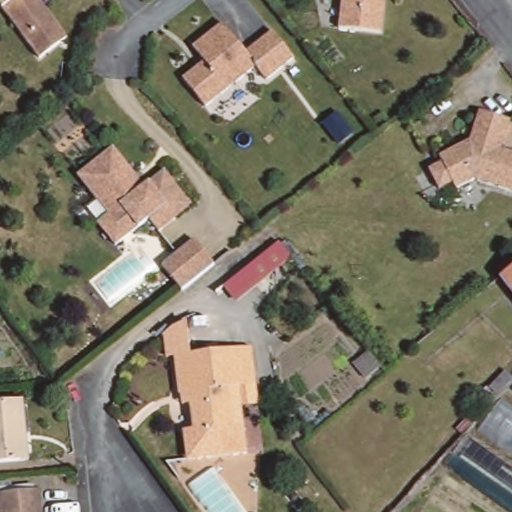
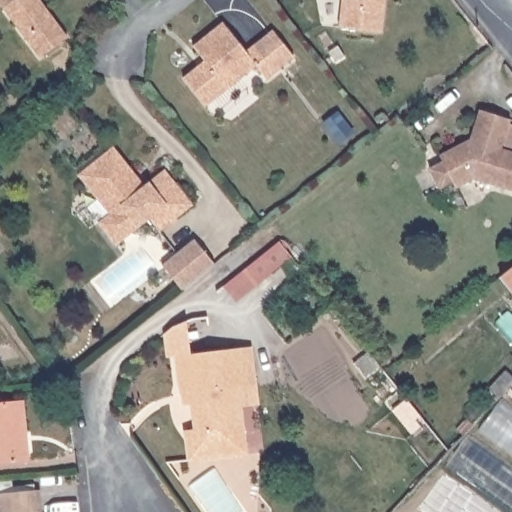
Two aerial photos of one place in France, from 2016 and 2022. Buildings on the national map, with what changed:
unchanged [(64,40),(37,60),(0,11),(0,0),(32,0),(64,40)]
unchanged [(381,29),(337,26),(341,0),(384,0),(381,29)]
unchanged [(202,62),(190,48),(220,24),(243,53),(270,32),(291,58),(266,80),(255,67),(204,108),(181,79),(202,62)]
unchanged [(446,161),(443,153),(473,140),(482,112),(511,121),(502,149),(512,153),(512,190),(476,177),(458,184),(456,178),(447,182),(443,183),(439,172),(437,164),(446,161)]
unchanged [(174,221),(156,235),(146,222),(112,249),(95,226),(105,218),(74,177),(110,148),(142,189),(162,173),(173,188),(189,209),(174,221)]
unchanged [(184,292),(161,265),(195,238),(216,264),(184,292)]
unchanged [(224,287),(278,241),(292,257),(237,302),(224,287)]
unchanged [(512,295),(498,278),(510,268),(512,266),(512,295)]
unchanged [(176,356),(166,357),(164,335),(172,327),(186,322),(190,354),(176,356)]
unchanged [(258,385),(231,389),(236,424),(244,422),(249,454),(188,462),(184,430),(193,429),(190,404),(181,405),(176,356),(251,347),(258,385)]
unchanged [(512,411),(512,512),(502,512),(447,471),(500,403),(512,411)]
unchanged [(22,405),(25,461),(0,462),(0,406),(22,405)]
unchanged [(38,512),(0,512),(0,494),(36,492),(38,512)]

